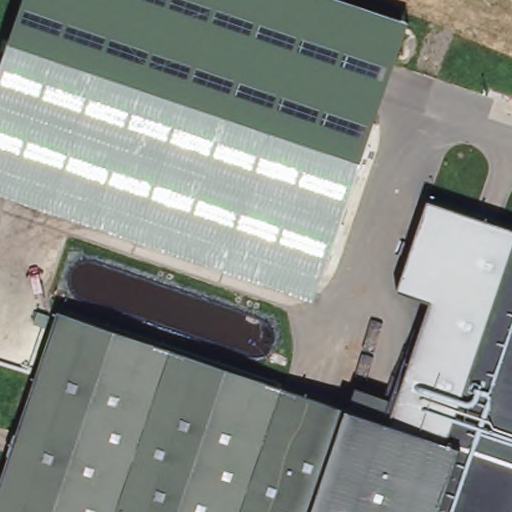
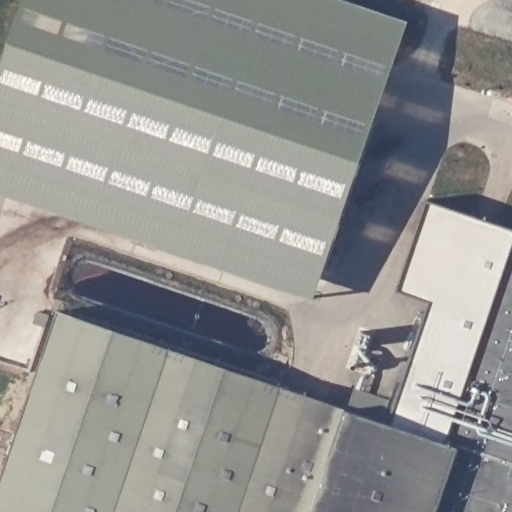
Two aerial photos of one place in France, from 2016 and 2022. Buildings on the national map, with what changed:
unchanged [(343,0),(409,22),(315,301),(0,194),(0,73),(25,0),(343,0)]
unchanged [(57,310),(345,407),(354,411),(354,386),(396,399),(431,301),(399,290),(428,203),(512,231),(512,512),(0,512),(0,482),(57,310)]

